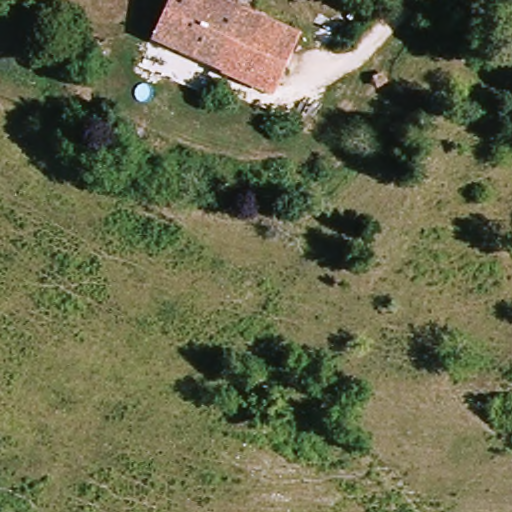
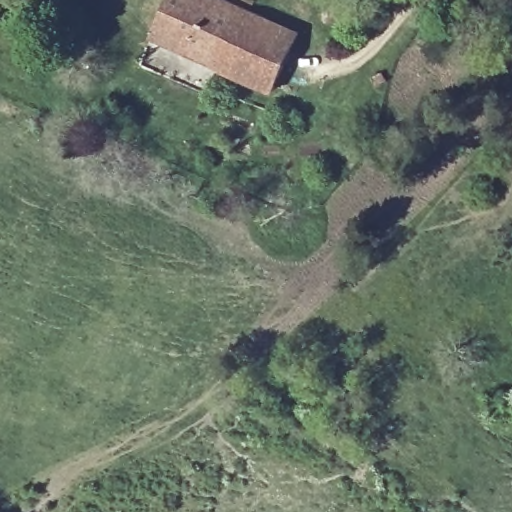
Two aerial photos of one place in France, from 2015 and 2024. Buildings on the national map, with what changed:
unchanged [(163,0),(217,0),(300,35),(276,91),(147,38),(163,0)]

